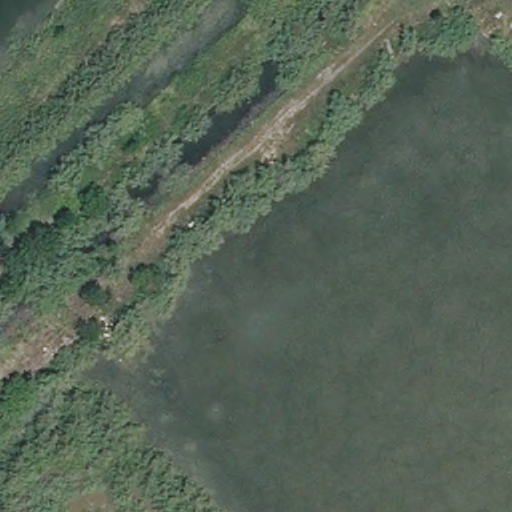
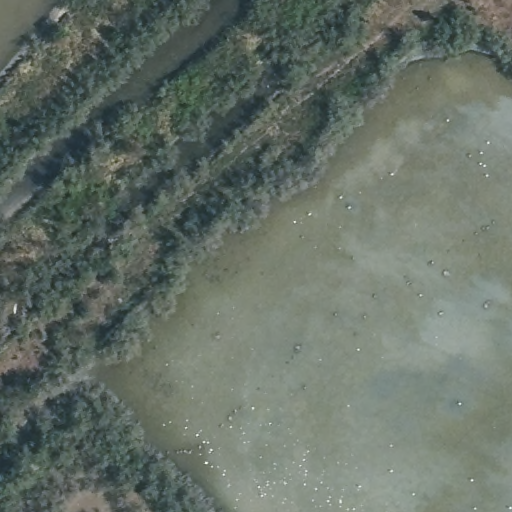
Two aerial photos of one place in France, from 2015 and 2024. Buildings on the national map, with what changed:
[]

